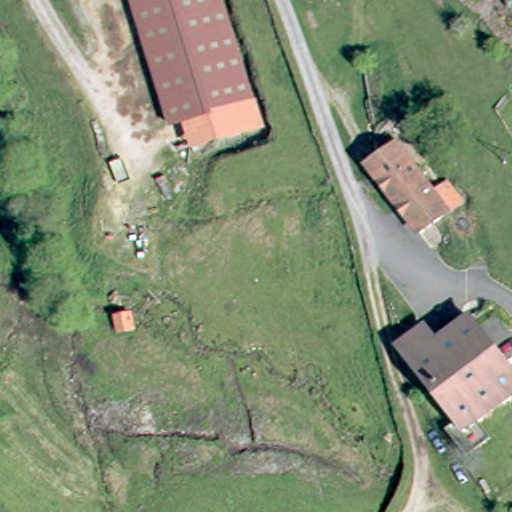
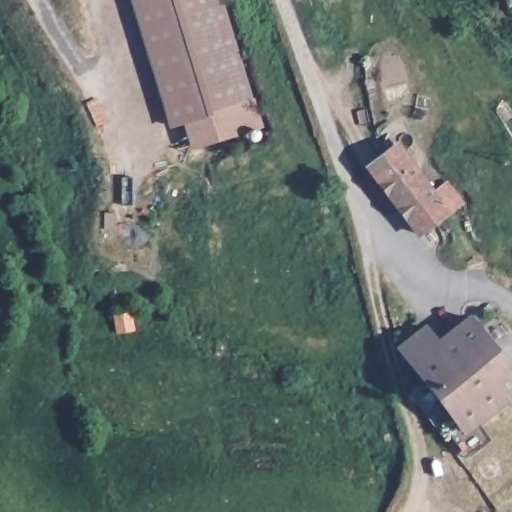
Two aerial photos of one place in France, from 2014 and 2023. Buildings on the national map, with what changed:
unchanged [(176,122),(139,0),(224,0),(253,98),(188,119),(176,122)]
unchanged [(253,98),(261,121),(196,143),(188,119),(253,98)]
unchanged [(381,151),(392,142),(446,211),(440,215),(417,232),(364,164),(381,151)]
unchanged [(512,386),(452,423),(429,387),(419,371),(406,350),(401,341),(403,339),(424,322),(437,338),(469,312),(512,380),(512,386)]

